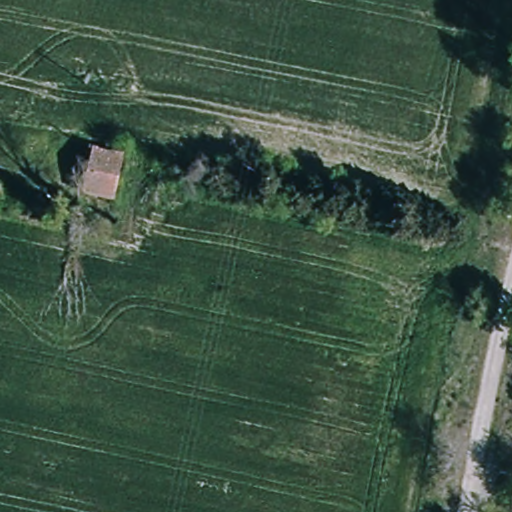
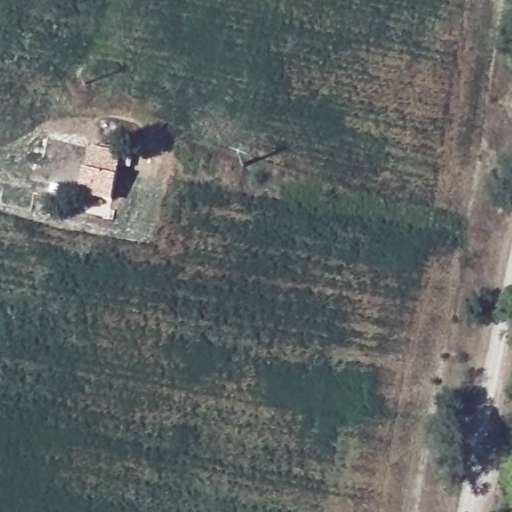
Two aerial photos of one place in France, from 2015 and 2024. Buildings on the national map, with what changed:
unchanged [(122,158),(113,200),(85,194),(95,152),(122,158)]

